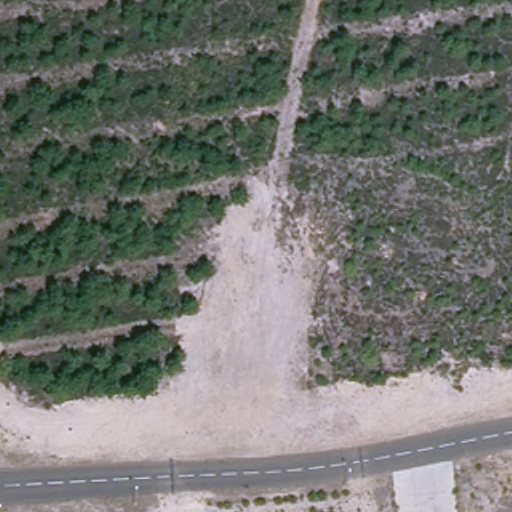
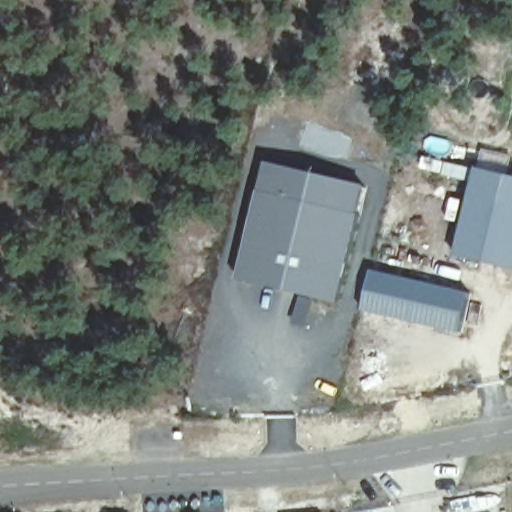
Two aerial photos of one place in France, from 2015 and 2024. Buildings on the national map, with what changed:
new [(367,186),(338,304),(240,280),(268,162),(367,186)]
new [(512,175),(512,267),(457,254),(478,166),(512,175)]
new [(370,268),(471,292),(460,334),(363,311),(370,268)]

